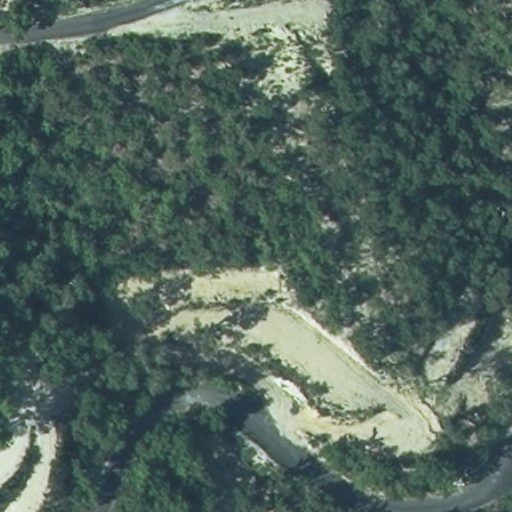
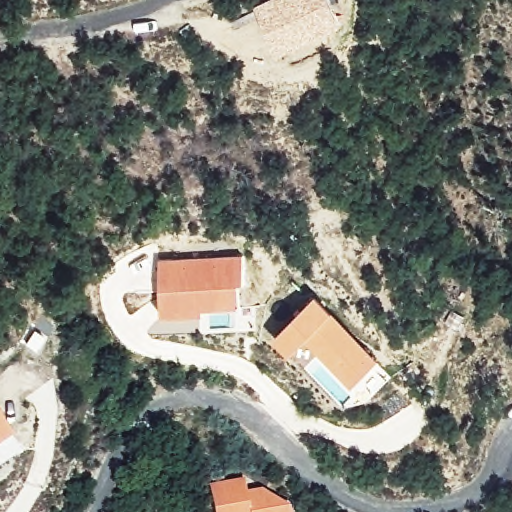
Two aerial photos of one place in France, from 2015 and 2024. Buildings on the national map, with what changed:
new [(255,8),(271,0),(331,0),(344,25),(278,57),(255,8)]
new [(242,254),(244,285),(240,285),(240,307),(204,310),(205,316),(160,318),(157,258),(242,254)]
new [(353,388),(305,343),(292,356),(275,340),(316,298),(332,314),(379,361),(353,388)]
new [(0,447),(0,419),(14,438),(0,447)]
new [(245,493),(262,490),(287,506),(288,512),(216,512),(212,485),(243,480),(245,493)]

